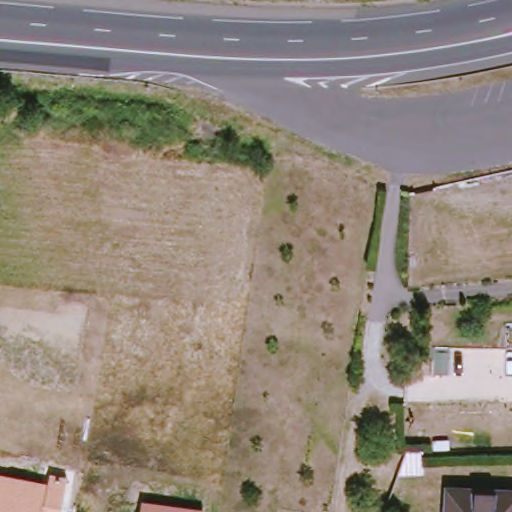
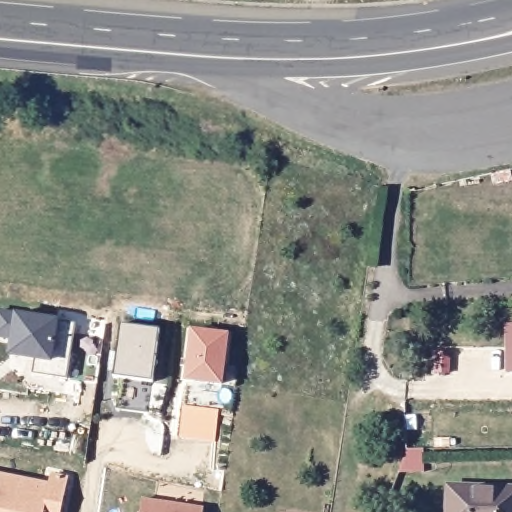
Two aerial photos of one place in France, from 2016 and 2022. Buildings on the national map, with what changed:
new [(75,323),(70,380),(35,376),(36,361),(10,356),(12,339),(0,339),(0,311),(75,323)]
new [(115,377),(122,326),(159,331),(154,382),(115,377)]
new [(186,381),(191,328),(229,333),(224,386),(186,381)]
unchanged [(464,346),(464,367),(452,367),(452,346),(464,346)]
new [(50,377),(85,382),(84,397),(49,392),(50,377)]
unchanged [(48,483),(50,473),(67,477),(61,512),(0,512),(0,474),(48,483)]
unchanged [(512,512),(451,512),(452,489),(512,491),(512,512)]
unchanged [(203,512),(140,512),(142,499),(204,509),(203,512)]

